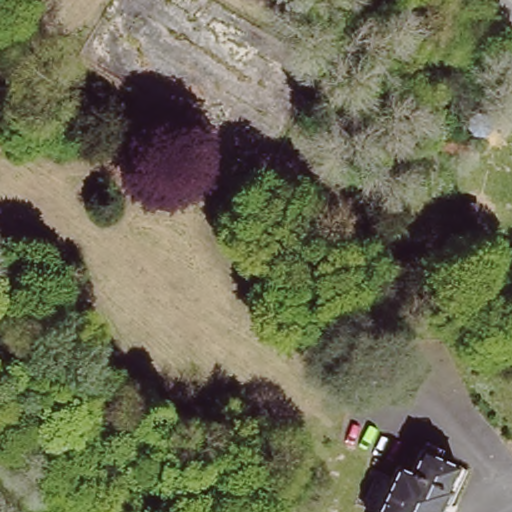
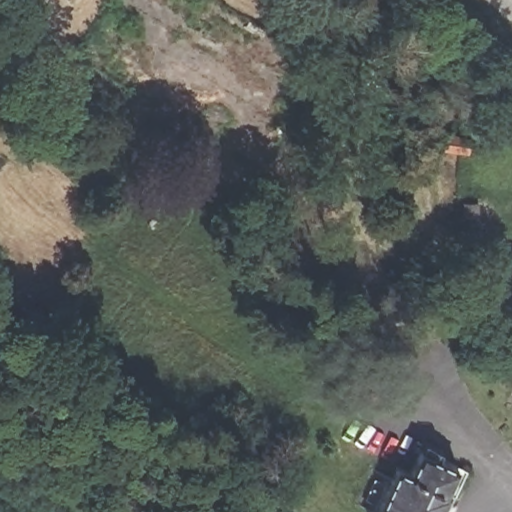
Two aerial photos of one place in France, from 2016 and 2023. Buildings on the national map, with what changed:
unchanged [(468,137),(467,153),(452,151),(438,150),(440,134),(468,137)]
unchanged [(444,512),(360,512),(364,504),(350,497),(367,461),(380,467),(385,456),(399,462),(409,440),(465,466),(444,512)]

